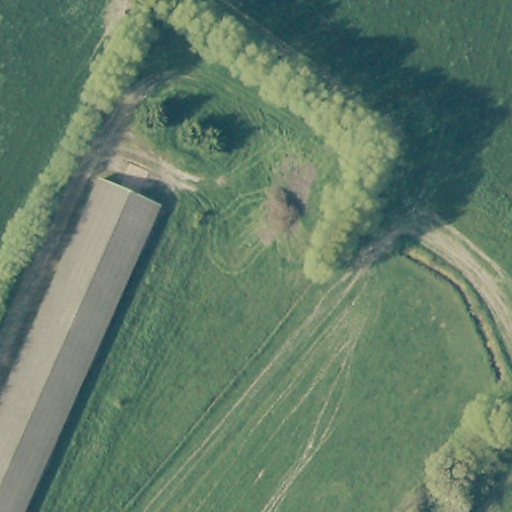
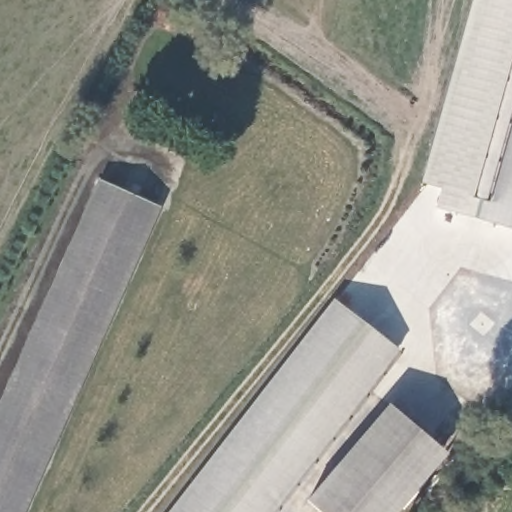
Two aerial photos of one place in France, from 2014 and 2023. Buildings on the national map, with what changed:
new [(486,0),(512,0),(512,225),(430,199),(486,0)]
unchanged [(157,203),(20,512),(0,512),(0,399),(98,177),(157,203)]
new [(399,349),(273,512),(169,512),(336,299),(399,349)]
new [(320,512),(307,500),(388,402),(449,452),(399,512),(320,512)]

